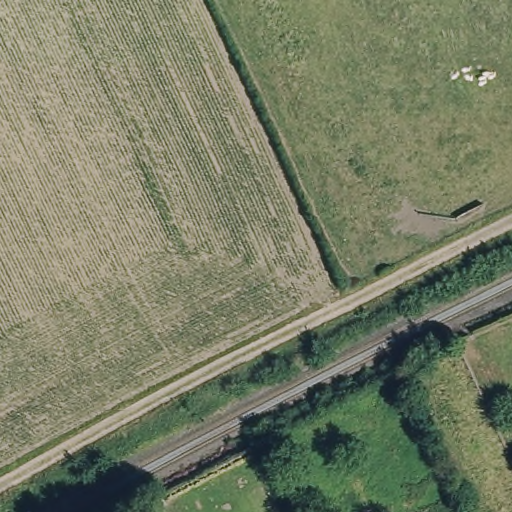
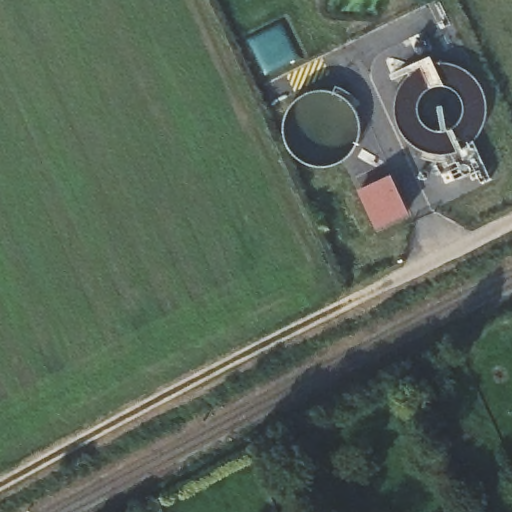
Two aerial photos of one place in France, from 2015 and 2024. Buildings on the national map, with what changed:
new [(411,213),(375,229),(357,189),(393,173),(411,213)]

